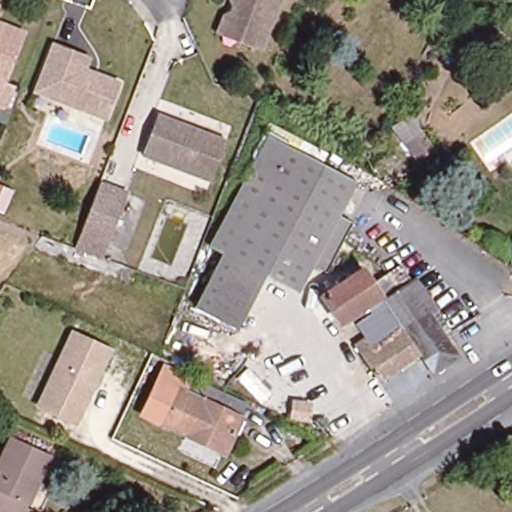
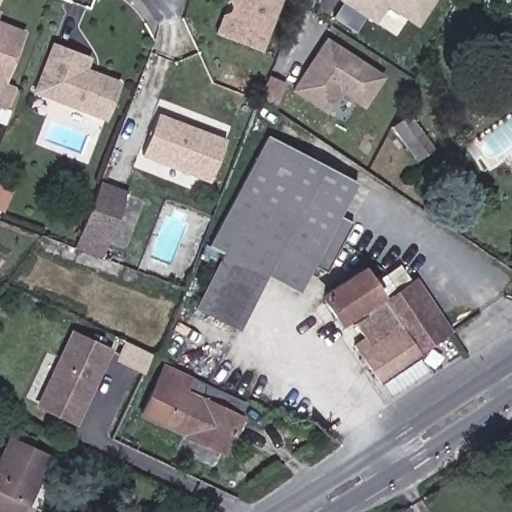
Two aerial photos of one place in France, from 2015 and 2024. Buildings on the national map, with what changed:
unchanged [(281,0),(263,50),(241,42),(217,33),(229,0),(281,0)]
new [(338,0),(430,0),(414,25),(386,6),(374,23),(338,0)]
unchanged [(16,29),(0,69),(0,22),(16,29)]
unchanged [(99,114),(29,86),(49,35),(83,49),(79,65),(113,77),(99,114)]
new [(340,94),(326,113),(292,90),(326,37),(384,75),(364,107),(340,94)]
new [(19,87),(9,110),(0,107),(0,79),(19,87)]
unchanged [(138,151),(152,112),(219,137),(205,176),(138,151)]
unchanged [(430,139),(426,142),(432,152),(419,160),(399,129),(415,117),(430,139)]
unchanged [(325,278),(316,273),(308,269),(294,295),(261,277),(219,255),(205,248),(266,136),(355,183),(337,217),(343,220),(354,225),(325,278)]
unchanged [(82,235),(101,183),(133,194),(113,246),(107,260),(76,250),(82,235)]
unchanged [(246,304),(204,282),(219,255),(261,277),(246,304)]
unchanged [(375,379),(354,344),(363,337),(351,318),(362,311),(358,306),(340,321),(323,297),(359,265),(370,277),(394,256),(448,331),(439,336),(452,356),(424,375),(411,355),(375,379)]
unchanged [(232,329),(191,306),(204,282),(246,304),(232,329)]
unchanged [(72,330),(114,349),(80,425),(37,406),(72,330)]
unchanged [(158,426),(138,417),(162,366),(181,375),(158,426)]
unchanged [(246,404),(240,418),(247,421),(229,457),(158,426),(181,375),(246,404)]
unchanged [(0,493),(0,466),(14,436),(53,454),(30,505),(0,493)]
unchanged [(26,512),(0,512),(0,493),(30,505),(26,512)]

